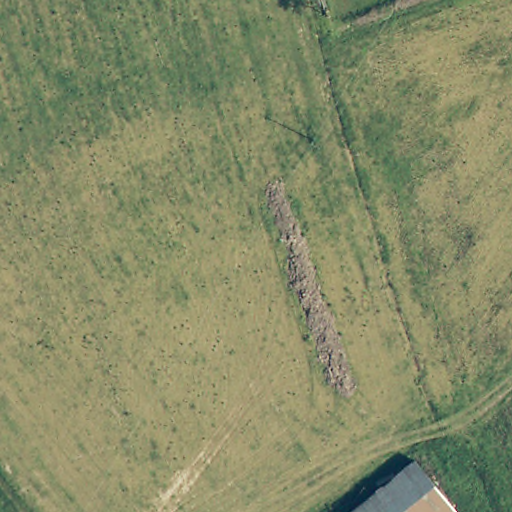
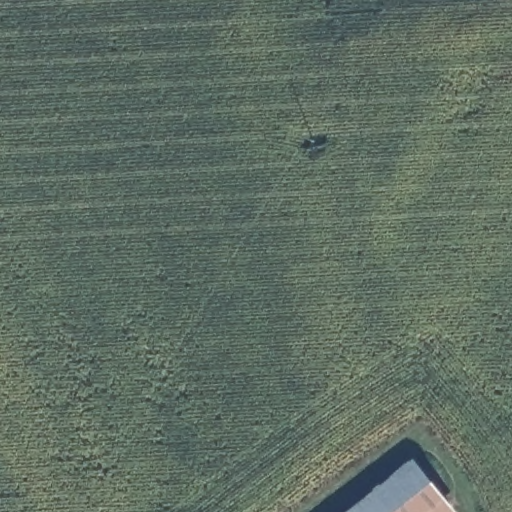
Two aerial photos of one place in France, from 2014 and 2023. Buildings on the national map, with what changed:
unchanged [(351,512),(418,460),(453,507),(446,512),(351,512)]

